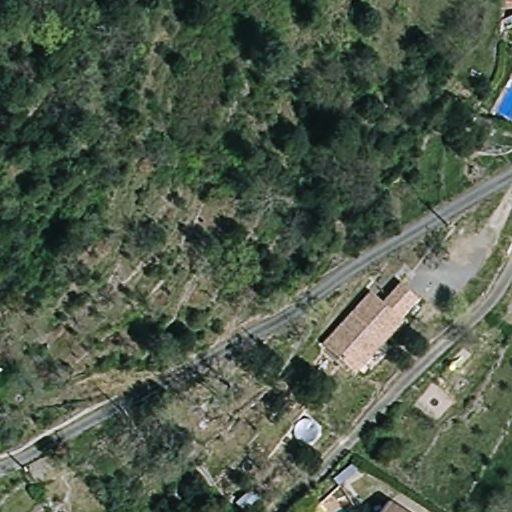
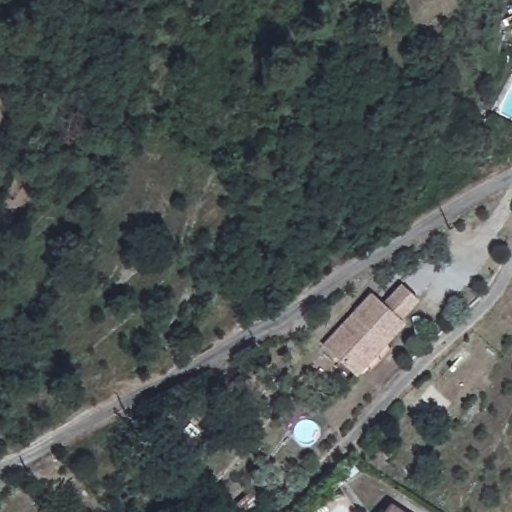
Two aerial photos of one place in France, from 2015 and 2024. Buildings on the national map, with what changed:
unchanged [(355,307),(371,294),(381,306),(402,289),(416,307),(395,324),(397,327),(343,371),(330,354),(317,338),(355,307)]
unchanged [(403,512),(387,512),(391,505),(403,512)]

